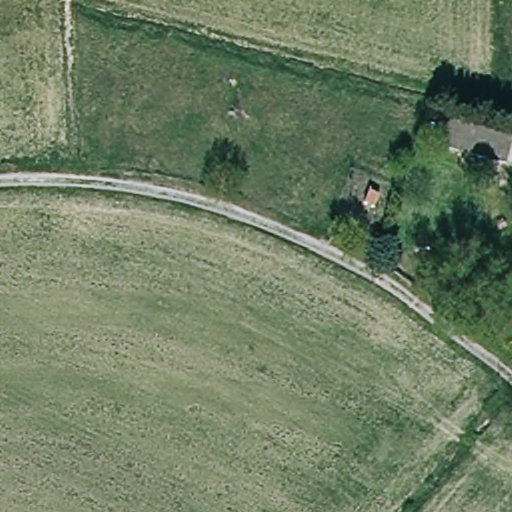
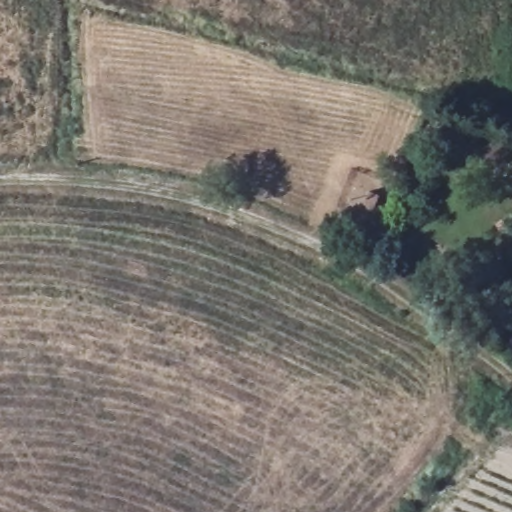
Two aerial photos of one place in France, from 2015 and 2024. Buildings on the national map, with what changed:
unchanged [(439,154),(447,120),(512,138),(512,152),(508,169),(439,154)]

